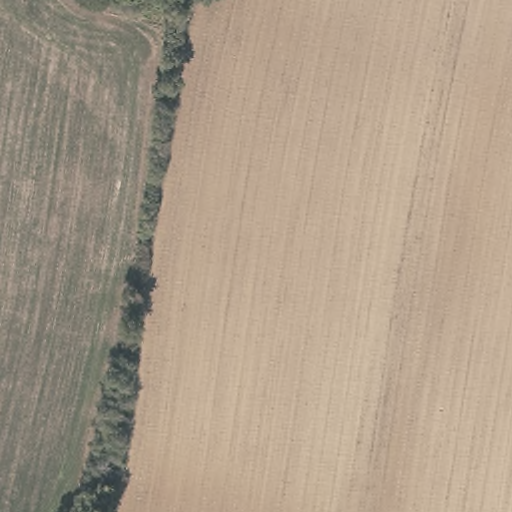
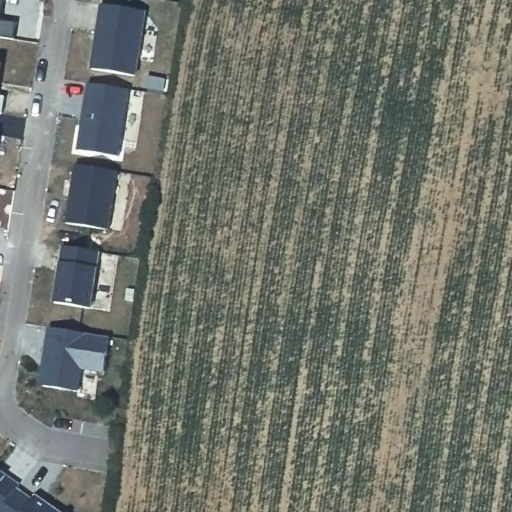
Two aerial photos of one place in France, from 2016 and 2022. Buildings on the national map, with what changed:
new [(22,26),(19,44),(0,41),(0,0),(10,0),(6,24),(22,26)]
new [(104,7),(147,13),(138,77),(94,71),(104,7)]
new [(6,68),(2,100),(10,101),(8,118),(0,117),(0,67),(6,68)]
new [(83,125),(86,125),(90,101),(86,100),(89,84),(130,90),(120,157),(79,151),(83,125)]
new [(5,133),(0,171),(0,133),(5,133)]
new [(72,200),(74,200),(77,185),(75,184),(77,168),(120,175),(111,233),(68,227),(72,200)]
new [(67,249),(102,254),(94,311),(59,306),(67,249)]
new [(46,361),(43,361),(48,327),(108,336),(103,370),(80,367),(77,390),(42,385),(46,361)]
new [(21,486),(18,490),(3,512),(0,512),(0,472),(21,486)]
new [(18,490),(34,502),(37,497),(58,512),(3,512),(18,490)]

